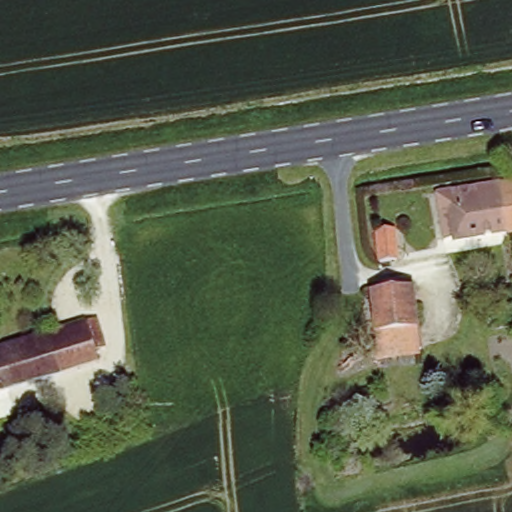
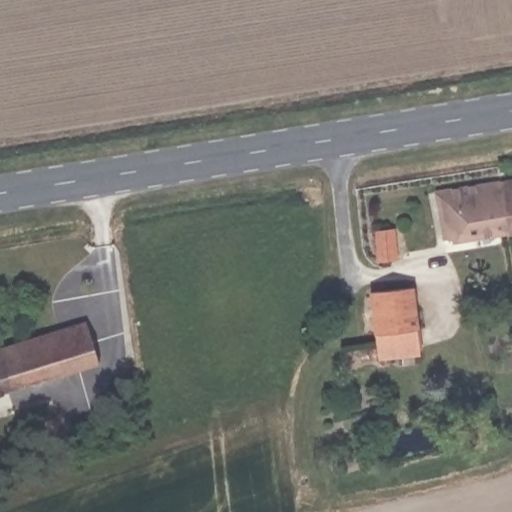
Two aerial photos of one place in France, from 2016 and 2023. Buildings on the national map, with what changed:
unchanged [(506,184),(512,183),(512,221),(506,184)]
unchanged [(512,221),(512,234),(462,242),(462,240),(450,242),(442,194),(506,184),(512,221)]
unchanged [(392,233),(395,265),(377,267),(374,235),(392,233)]
unchanged [(416,291),(423,359),(380,364),(379,354),(373,295),(416,291)]
unchanged [(485,323),(482,300),(512,295),(512,319),(485,323)]
unchanged [(84,326),(95,369),(59,380),(47,336),(84,326)]
unchanged [(0,396),(0,349),(47,336),(59,380),(0,396)]

